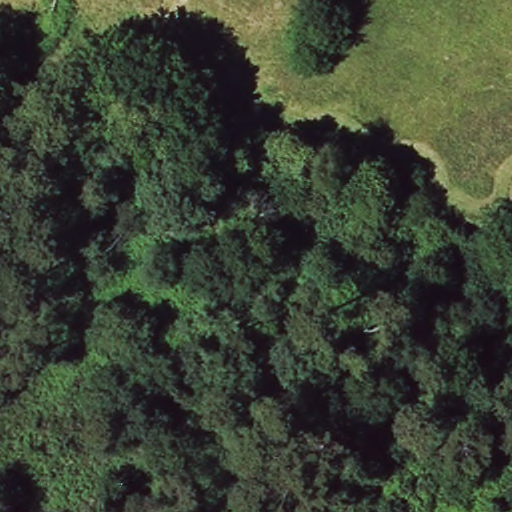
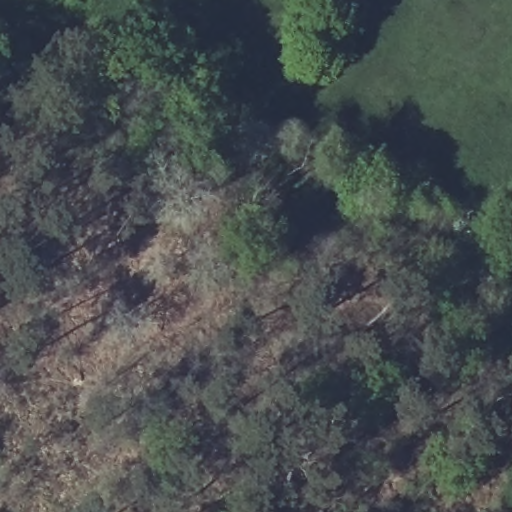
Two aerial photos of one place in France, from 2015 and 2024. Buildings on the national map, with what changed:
[]

